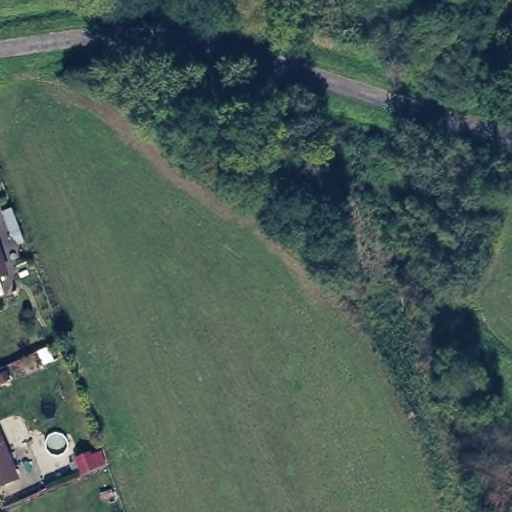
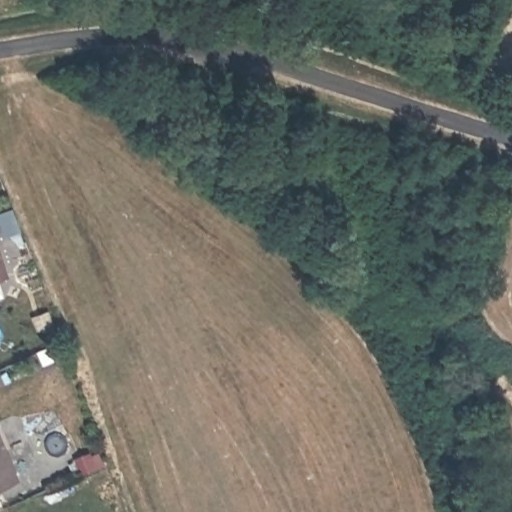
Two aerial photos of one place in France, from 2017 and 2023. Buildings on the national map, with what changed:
unchanged [(0,270),(0,258),(4,269),(0,270)]
unchanged [(0,487),(0,434),(20,478),(0,487)]
unchanged [(79,460),(94,454),(100,452),(106,466),(99,469),(85,474),(79,460)]

